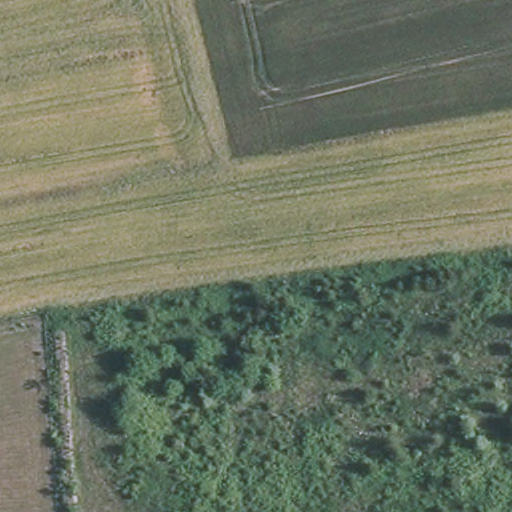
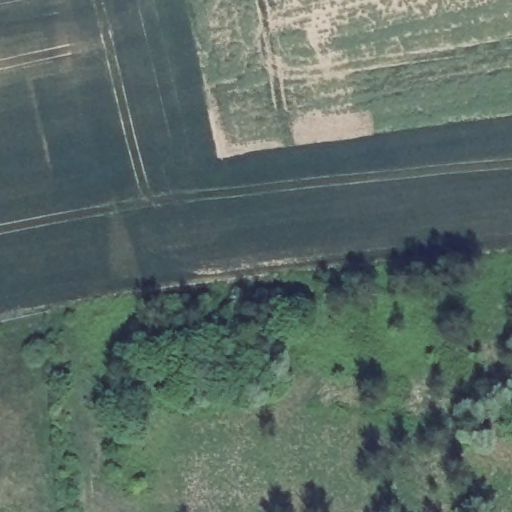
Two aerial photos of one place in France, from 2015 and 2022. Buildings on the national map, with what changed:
[]

